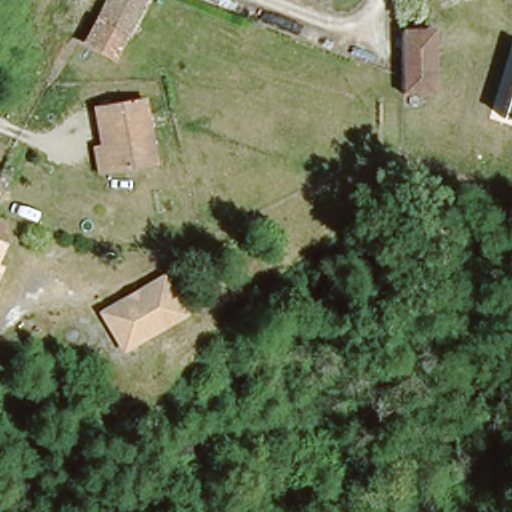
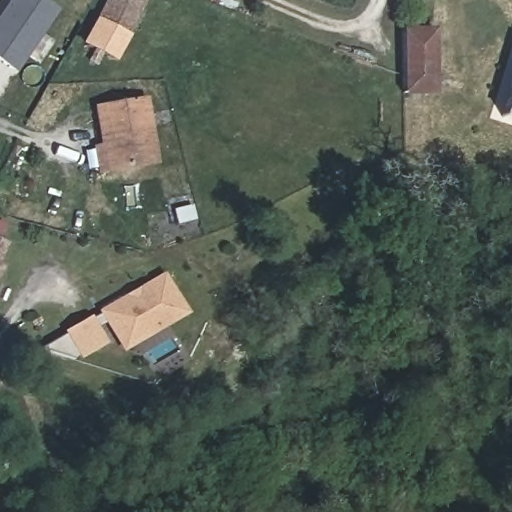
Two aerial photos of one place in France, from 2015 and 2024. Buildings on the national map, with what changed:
new [(58,10),(14,73),(0,63),(0,11),(8,0),(43,0),(58,10)]
unchanged [(84,42),(94,23),(107,0),(142,0),(131,20),(122,38),(112,58),(84,42)]
unchanged [(435,29),(435,89),(405,90),(405,72),(404,28),(435,29)]
unchanged [(512,77),(512,119),(499,115),(512,77)]
unchanged [(93,140),(101,139),(95,103),(142,96),(152,160),(106,167),(98,168),(93,140)]
unchanged [(4,263),(12,267),(4,287),(0,297),(0,239),(11,244),(4,263)]
unchanged [(164,274),(187,314),(122,354),(99,312),(164,274)]

